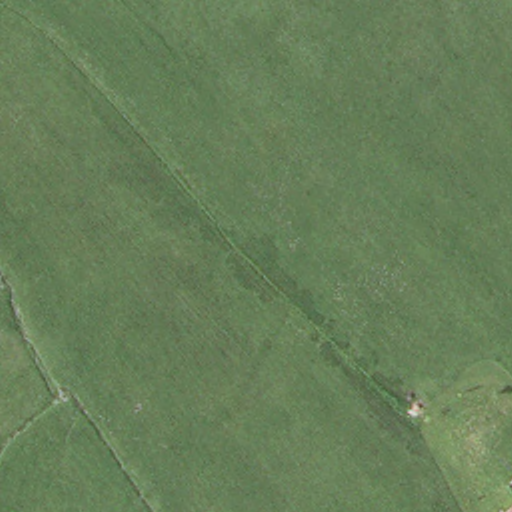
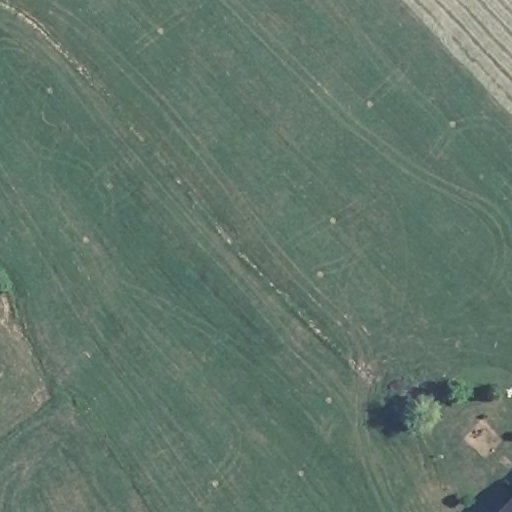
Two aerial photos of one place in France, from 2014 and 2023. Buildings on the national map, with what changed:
unchanged [(512,511),(512,512),(511,512),(512,511)]

